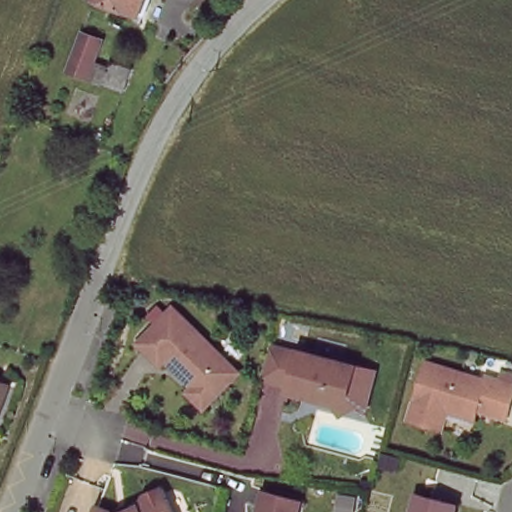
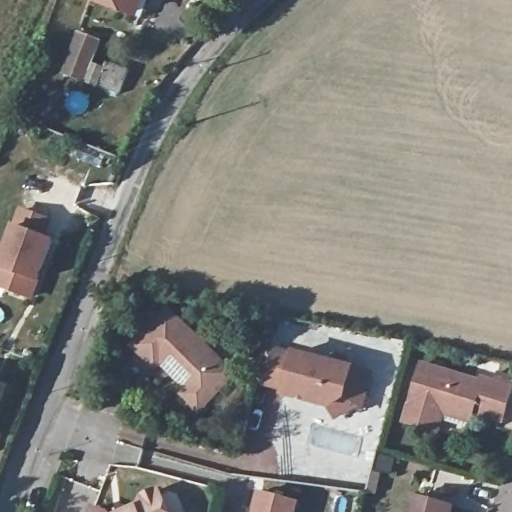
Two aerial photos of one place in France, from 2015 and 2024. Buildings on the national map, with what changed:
unchanged [(97,0),(141,0),(136,14),(97,0)]
unchanged [(98,42),(90,69),(68,60),(77,35),(98,42)]
unchanged [(99,84),(103,74),(106,63),(128,71),(124,81),(120,91),(99,84)]
new [(48,223),(42,239),(51,243),(30,299),(6,290),(0,288),(0,265),(20,212),(48,223)]
unchanged [(190,393),(193,390),(188,384),(185,388),(163,366),(157,372),(135,350),(170,314),(236,379),(206,409),(201,415),(185,398),(190,393)]
unchanged [(359,409),(339,421),(332,410),(309,404),(311,396),(303,394),(301,402),(286,398),(287,393),(259,385),(261,377),(268,352),(296,360),(297,357),(355,372),(353,381),(365,384),(359,409)]
unchanged [(405,417),(422,359),(480,377),(482,373),(512,382),(512,384),(502,415),(472,406),(470,416),(469,416),(467,422),(441,414),(437,427),(405,417)]
unchanged [(114,512),(127,506),(129,511),(138,507),(142,496),(160,488),(171,512),(114,512)]
unchanged [(259,492),(296,502),(293,512),(254,512),(259,492)]
unchanged [(413,492),(452,502),(449,512),(408,512),(413,492)]
unchanged [(95,507),(108,512),(93,512),(95,507)]

